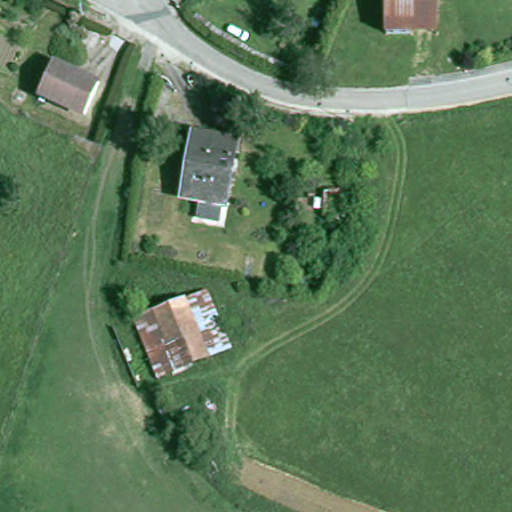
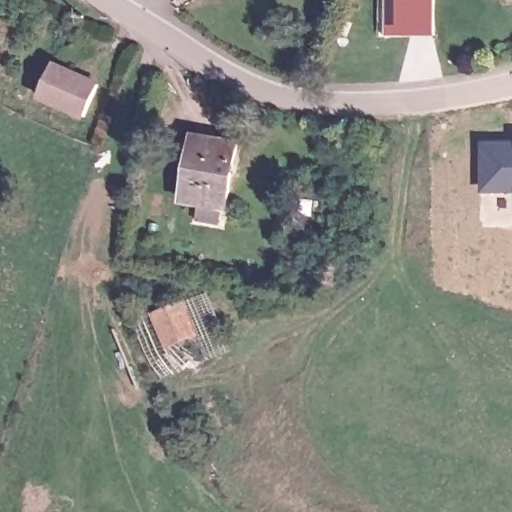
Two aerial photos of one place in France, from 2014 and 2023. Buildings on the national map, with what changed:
unchanged [(57,61),(99,81),(86,113),(42,93),(57,61)]
unchanged [(185,199),(196,138),(237,144),(227,206),(185,199)]
unchanged [(349,177),(350,140),(370,139),(370,177),(349,177)]
new [(486,190),(485,144),(512,143),(512,190),(486,190)]
unchanged [(325,219),(326,193),(342,193),(342,219),(325,219)]
unchanged [(206,293),(230,353),(157,382),(134,320),(206,293)]

